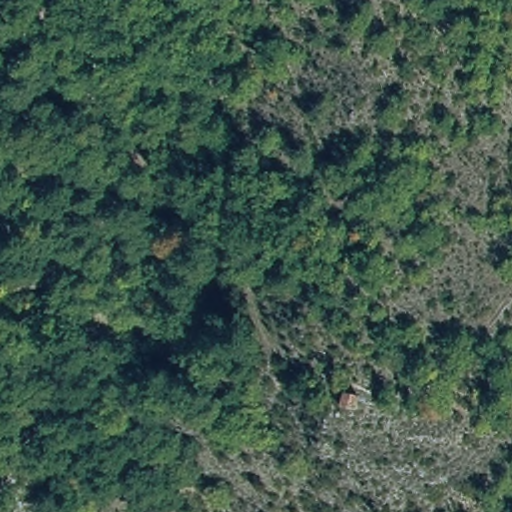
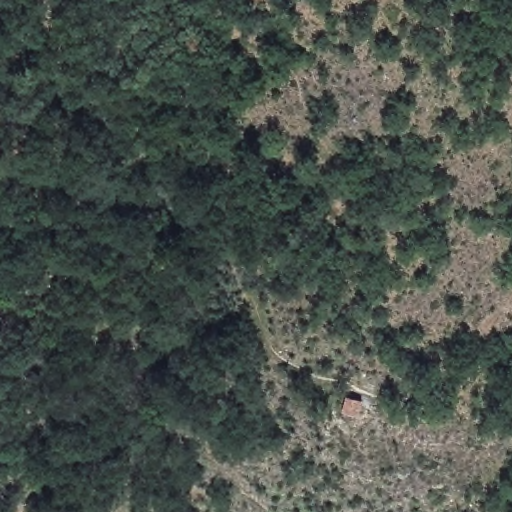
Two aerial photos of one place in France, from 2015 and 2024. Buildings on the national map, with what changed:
unchanged [(365,397),(360,422),(345,419),(349,394),(365,397)]

